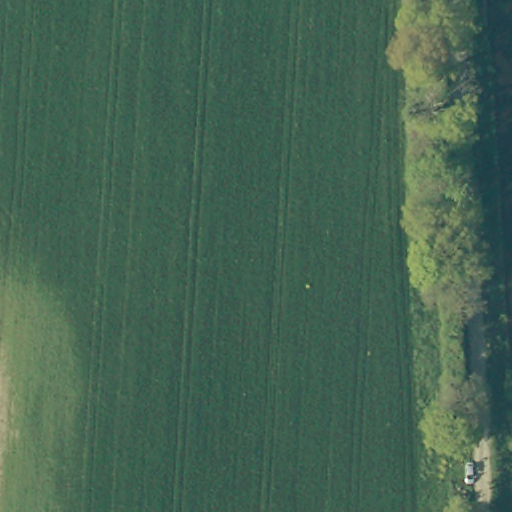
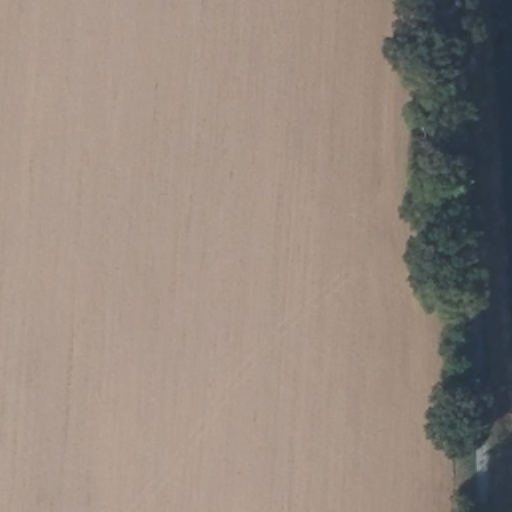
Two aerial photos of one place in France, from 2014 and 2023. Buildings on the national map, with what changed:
unchanged [(433,139),(416,140),(416,117),(432,117),(433,139)]

